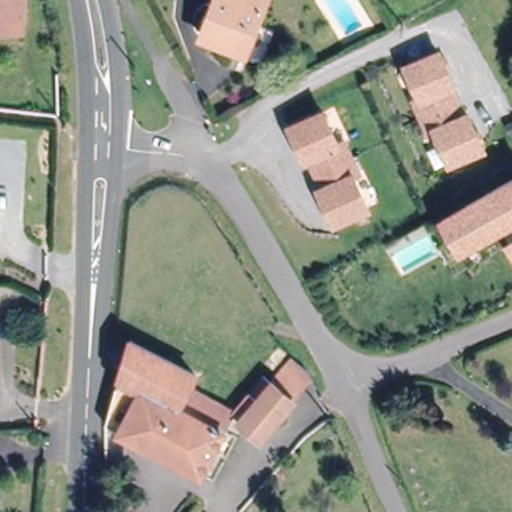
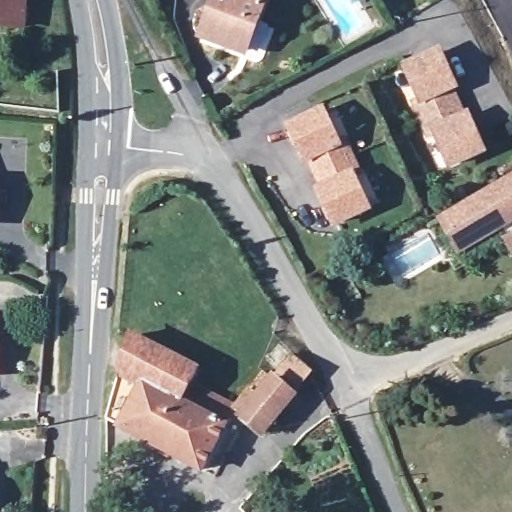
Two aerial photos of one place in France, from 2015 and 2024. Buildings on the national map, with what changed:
unchanged [(23,28),(0,26),(0,0),(25,0),(23,28)]
unchanged [(213,0),(263,0),(244,52),(200,35),(213,0)]
unchanged [(413,101),(418,99),(402,66),(436,51),(451,84),(447,87),(461,117),(465,115),(481,148),(448,164),(433,131),(428,133),(413,101)]
unchanged [(320,112),(336,144),(341,142),(356,173),(351,176),(366,208),(333,224),(317,191),(322,188),(308,159),(303,161),(287,128),(320,112)]
unchanged [(512,178),(512,219),(460,250),(442,220),(498,186),(512,178)]
unchanged [(512,245),(508,239),(512,236),(512,245)]
unchanged [(106,415),(132,331),(198,366),(191,380),(234,402),(233,404),(200,466),(106,415)]
unchanged [(262,428),(233,404),(234,402),(264,364),(274,372),(292,351),(309,365),(292,386),(295,388),(262,428)]

